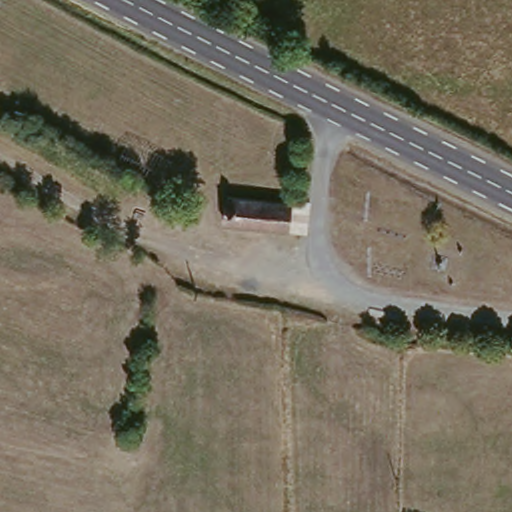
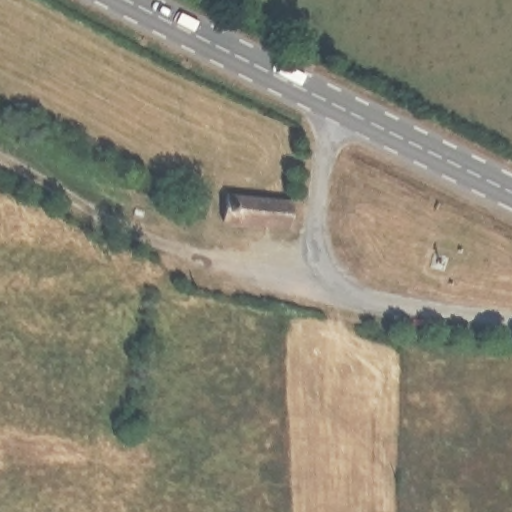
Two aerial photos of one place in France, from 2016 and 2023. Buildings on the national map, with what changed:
unchanged [(229,228),(231,202),(295,210),(291,234),(229,228)]

